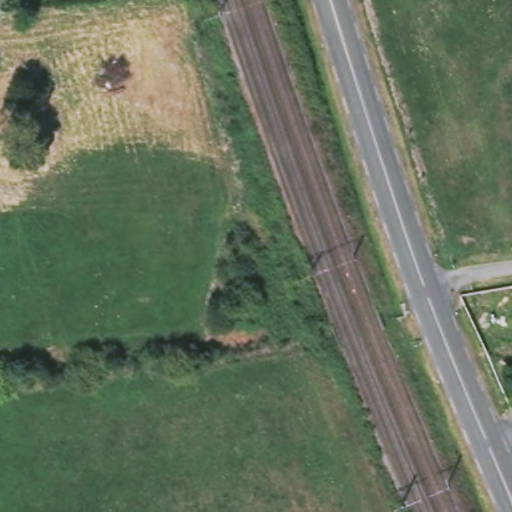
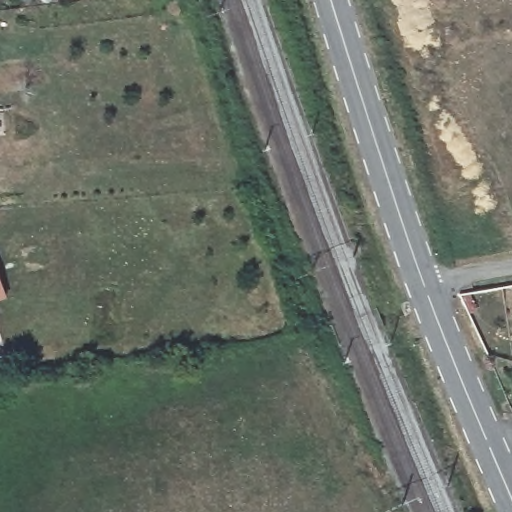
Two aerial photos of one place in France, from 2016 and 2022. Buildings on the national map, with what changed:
new [(0,300),(0,278),(7,298),(0,300)]

